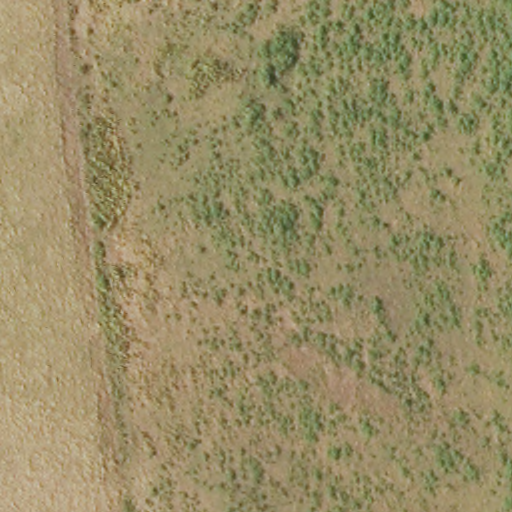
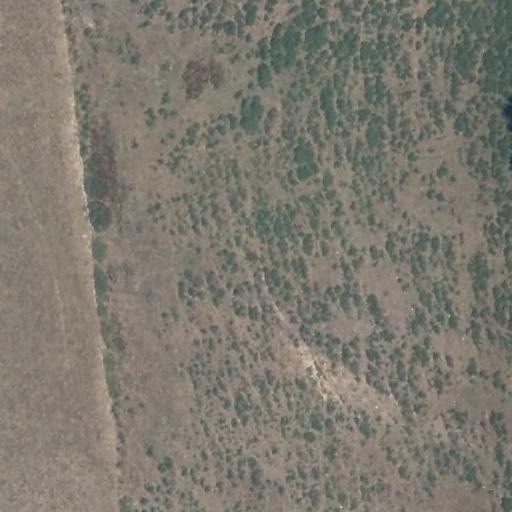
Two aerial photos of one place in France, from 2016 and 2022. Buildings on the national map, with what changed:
[]

